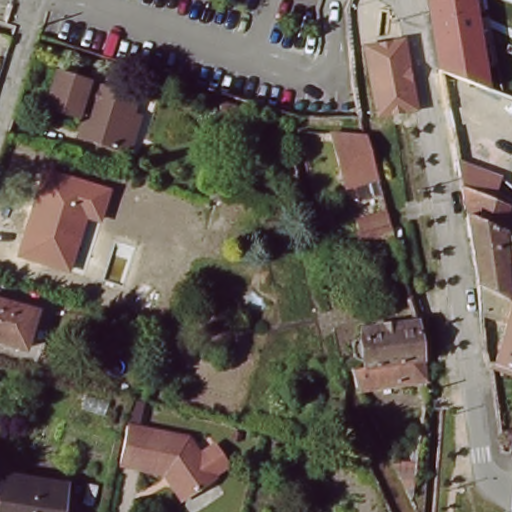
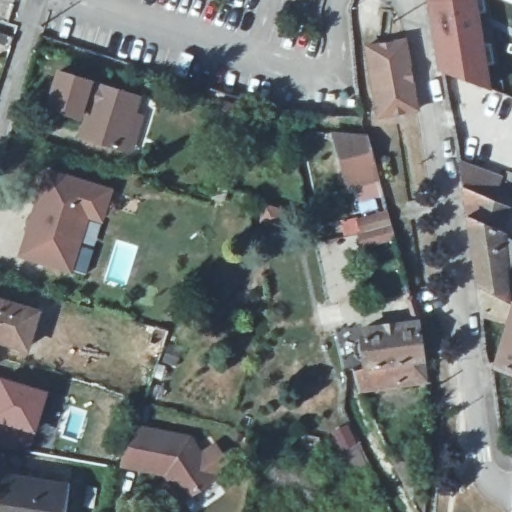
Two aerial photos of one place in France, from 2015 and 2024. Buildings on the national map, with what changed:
unchanged [(512,32),(505,29),(503,28),(478,19),(460,13),(444,7),(441,6),(435,4),(435,0),(512,0),(512,32)]
unchanged [(444,7),(460,13),(478,19),(503,28),(505,29),(512,32),(512,98),(506,96),(446,74),(457,39),(435,31),(435,4),(441,6),(444,7)]
unchanged [(406,114),(393,117),(378,119),(377,114),(366,50),(387,46),(395,44),(404,43),(416,112),(406,114)]
unchanged [(135,156),(123,153),(73,138),(78,119),(48,109),(60,74),(140,99),(133,118),(145,122),(135,156)]
unchanged [(241,101),(248,103),(244,117),(220,109),(224,95),(241,101)]
unchanged [(348,178),(334,127),(364,130),(376,171),(348,178)]
unchanged [(463,201),(461,190),(460,180),(456,161),(501,176),(493,203),(510,209),(512,211),(512,300),(505,297),(476,282),(473,264),(469,239),(465,211),(463,201)]
unchanged [(112,188),(103,223),(88,220),(72,273),(17,257),(44,169),(112,188)]
unchanged [(282,219),(265,216),(268,203),(285,207),(282,219)]
unchanged [(364,241),(358,227),(362,226),(358,212),(386,204),(390,219),(395,234),(364,241)]
unchanged [(495,360),(508,322),(480,309),(480,305),(477,288),(476,282),(505,297),(512,300),(512,374),(487,364),(495,360)]
unchanged [(0,339),(0,299),(36,310),(25,346),(0,339)]
unchanged [(363,329),(418,321),(418,325),(423,357),(368,365),(363,329)]
unchanged [(424,362),(426,376),(374,383),(372,378),(356,380),(353,367),(368,365),(423,357),(424,362)]
new [(0,443),(0,375),(47,390),(33,434),(27,450),(0,443)]
unchanged [(180,483),(175,476),(128,466),(131,449),(131,448),(136,425),(196,439),(225,479),(200,497),(195,501),(180,483)]
unchanged [(0,512),(6,475),(65,485),(60,512),(0,512)]

